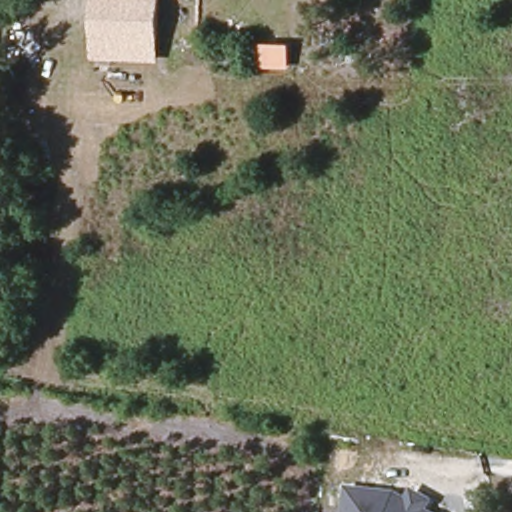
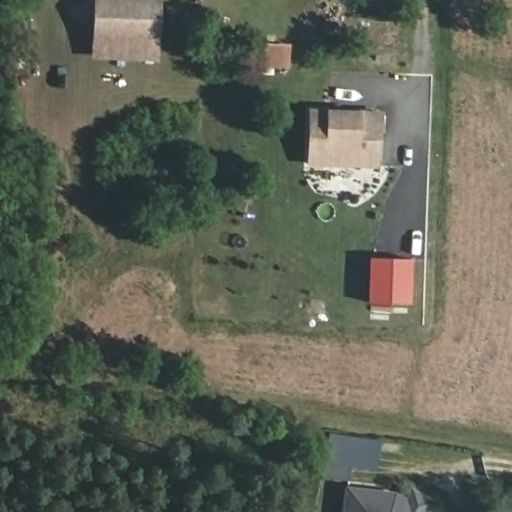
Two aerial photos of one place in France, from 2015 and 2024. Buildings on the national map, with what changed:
unchanged [(160,60),(90,59),(92,0),(160,0),(160,60)]
unchanged [(290,42),(288,68),(258,69),(258,42),(290,42)]
new [(377,167),(307,164),(308,109),(381,112),(377,167)]
new [(412,305),(367,303),(370,257),(414,259),(412,305)]
unchanged [(396,491),(406,497),(411,487),(436,502),(431,511),(432,512),(341,512),(345,486),(396,491)]

